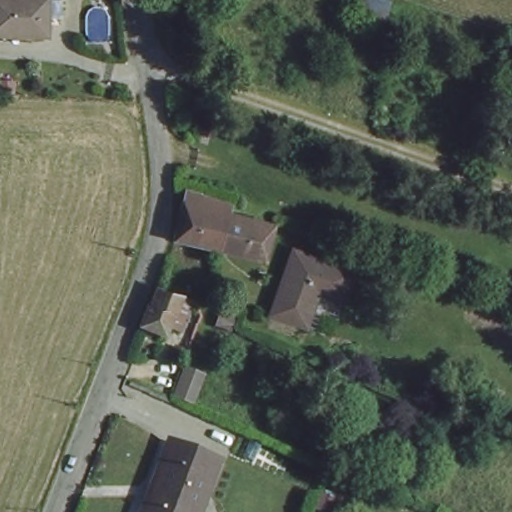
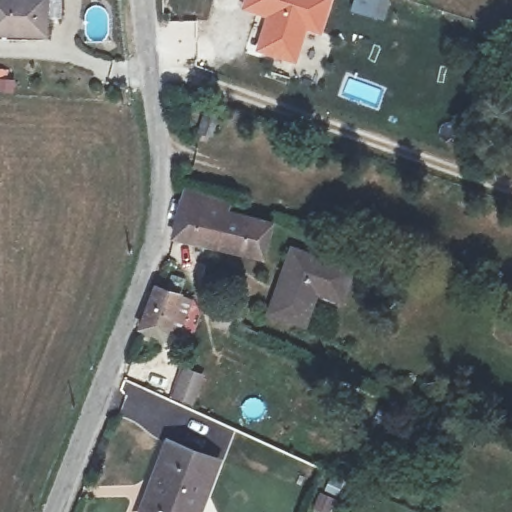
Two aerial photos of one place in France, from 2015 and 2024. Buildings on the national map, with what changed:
unchanged [(0,26),(0,0),(41,0),(41,27),(0,26)]
new [(243,7),(246,0),(329,0),(320,32),(305,27),(294,61),(257,50),(268,15),(243,7)]
unchanged [(217,242),(170,230),(178,197),(187,182),(228,199),(217,242)]
unchanged [(228,199),(229,195),(262,209),(260,214),(273,219),(263,254),(217,242),(228,199)]
unchanged [(338,294),(313,286),(301,318),(269,307),(291,244),(348,263),(338,294)]
unchanged [(144,322),(160,280),(180,288),(165,332),(144,322)]
unchanged [(209,372),(199,397),(184,391),(193,366),(209,372)]
unchanged [(189,512),(130,512),(129,512),(161,440),(211,462),(189,512)]

